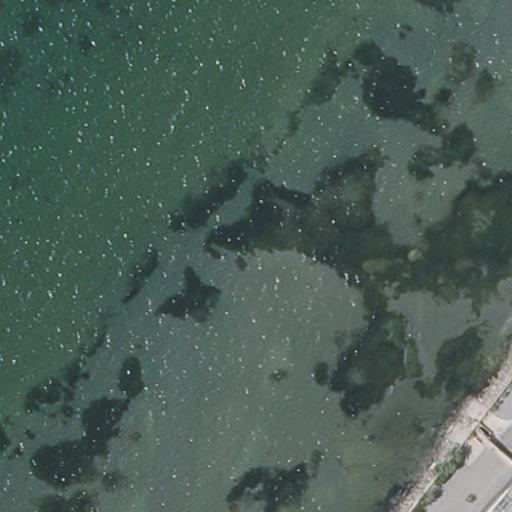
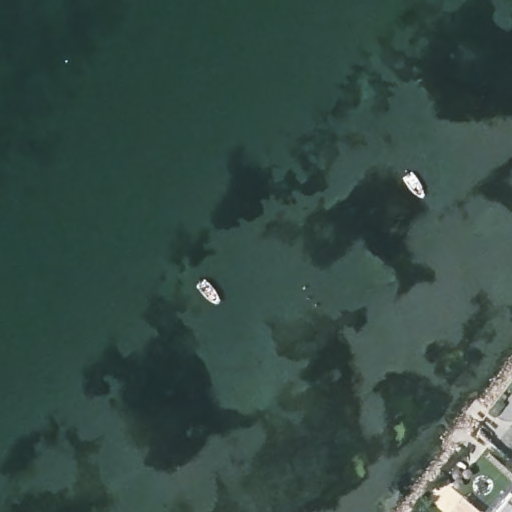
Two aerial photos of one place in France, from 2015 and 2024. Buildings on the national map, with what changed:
unchanged [(512,492),(512,512),(494,512),(512,492)]

